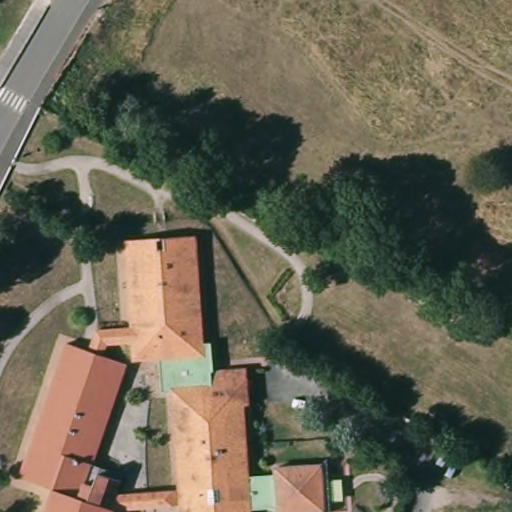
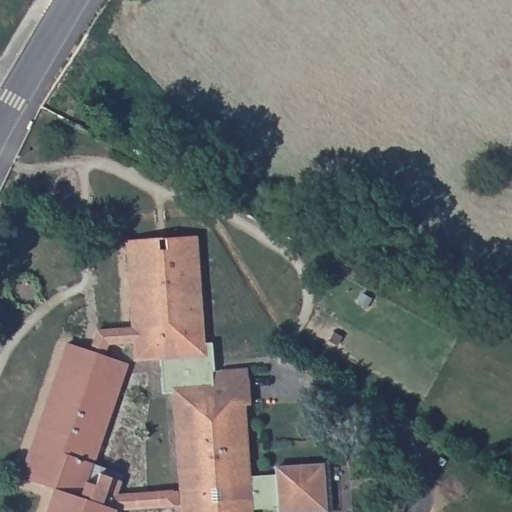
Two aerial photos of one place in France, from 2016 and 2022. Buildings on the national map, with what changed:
unchanged [(63,342),(87,350),(93,330),(128,328),(123,255),(122,241),(154,239),(154,251),(162,251),(161,238),(193,236),(197,297),(201,347),(192,357),(170,358),(168,338),(161,338),(162,358),(130,361),(129,342),(104,345),(100,356),(123,363),(82,482),(92,486),(95,474),(117,482),(113,495),(118,494),(176,491),(169,388),(200,387),(201,397),(209,396),(207,371),(244,368),(246,406),(241,406),(247,487),(229,488),(231,509),(248,507),(248,512),(177,512),(177,506),(110,510),(110,512),(43,512),(51,490),(17,478),(63,342)]
unchanged [(271,466),(350,463),(351,512),(272,512),(272,506),(248,507),(231,509),(229,488),(247,487),(272,486),(271,466)]

